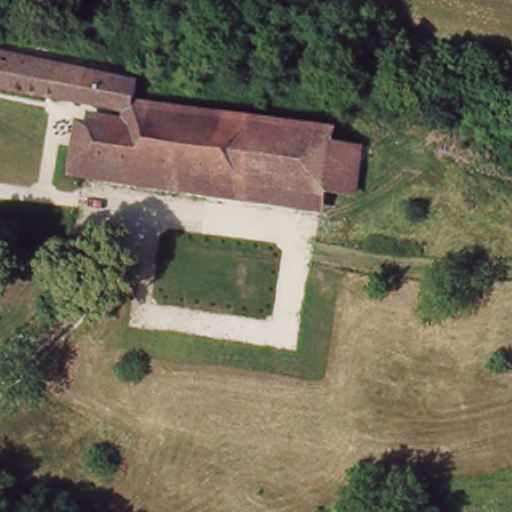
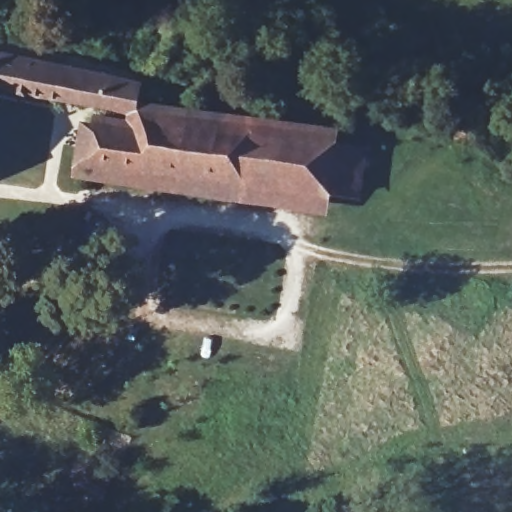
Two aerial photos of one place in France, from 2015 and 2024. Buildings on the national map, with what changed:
unchanged [(105,71),(142,80),(140,94),(140,103),(266,122),(256,195),(98,174),(104,126),(139,132),(141,118),(105,109),(73,101),(50,95),(0,82),(0,46),(72,63),(105,71)]
unchanged [(256,195),(266,122),(333,132),(332,143),(367,148),(362,201),(330,197),(328,206),(256,195)]

